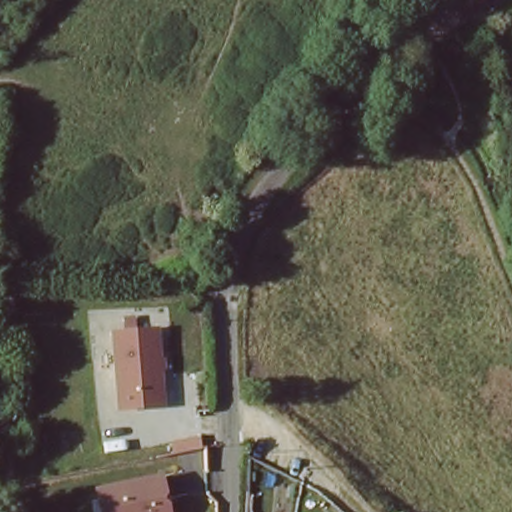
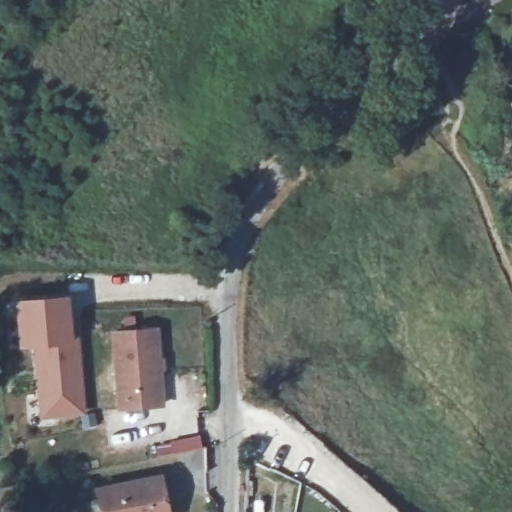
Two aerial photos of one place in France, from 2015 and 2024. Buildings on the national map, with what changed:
new [(68,294),(72,336),(78,335),(86,413),(96,412),(99,425),(83,428),(80,415),(38,420),(30,347),(17,348),(13,299),(68,294)]
unchanged [(166,407),(120,410),(113,331),(158,325),(166,407)]
new [(199,434),(202,448),(156,458),(153,444),(199,434)]
unchanged [(169,512),(99,512),(93,487),(163,474),(169,512)]

